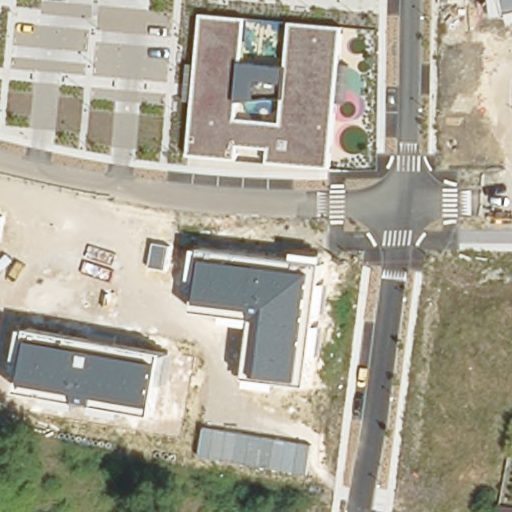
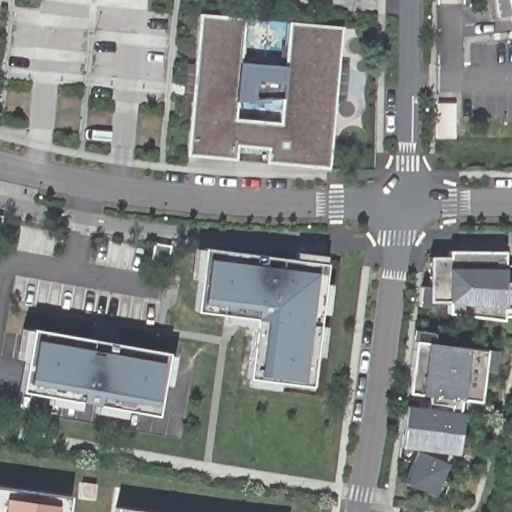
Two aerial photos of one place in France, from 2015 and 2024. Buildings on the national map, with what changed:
unchanged [(499,27),(493,0),(512,0),(512,24),(499,27)]
unchanged [(330,169),(266,163),(268,149),(237,147),(236,160),(187,156),(200,15),(246,19),(241,60),(283,65),(288,22),(342,27),(330,169)]
new [(0,242),(0,215),(4,216),(0,242)]
new [(159,240),(176,243),(171,276),(154,273),(159,240)]
unchanged [(310,385),(246,377),(253,318),(194,311),(203,248),(324,264),(310,385)]
new [(503,320),(448,313),(448,302),(429,301),(429,255),(447,255),(447,250),(505,251),(505,266),(512,266),(512,320),(503,320)]
unchanged [(156,414),(20,391),(29,329),(165,352),(156,414)]
new [(425,342),(466,347),(485,349),(480,401),(461,399),(455,453),(421,449),(447,458),(433,495),(403,483),(418,448),(401,446),(406,404),(428,406),(429,396),(406,393),(413,340),(425,342)]
new [(67,512),(0,512),(0,486),(69,495),(67,512)]
unchanged [(499,512),(500,505),(512,507),(512,512),(499,512)]
new [(113,512),(114,507),(147,512),(113,512)]

